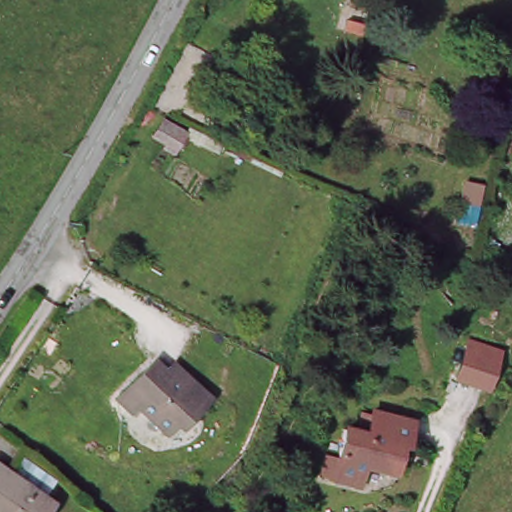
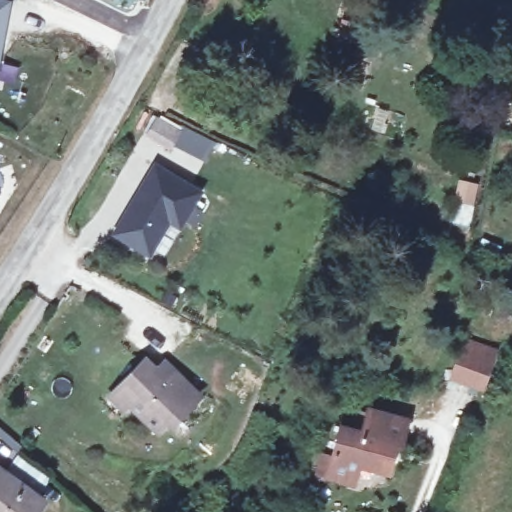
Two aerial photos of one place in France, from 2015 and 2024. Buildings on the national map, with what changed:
new [(0,53),(0,0),(11,0),(0,53)]
new [(145,111),(180,131),(214,142),(204,159),(171,148),(135,128),(145,111)]
new [(180,231),(169,224),(149,257),(110,235),(154,163),(202,192),(180,231)]
unchanged [(492,351),(482,383),(452,375),(461,342),(492,351)]
unchanged [(105,402),(144,364),(164,382),(169,375),(195,401),(181,417),(175,412),(152,437),(124,410),(117,415),(105,402)]
unchanged [(332,404),(367,413),(370,406),(415,419),(408,442),(398,439),(390,471),(367,465),(360,489),(325,478),(319,463),(332,404)]
unchanged [(5,473),(43,500),(34,512),(0,512),(0,478),(5,473)]

